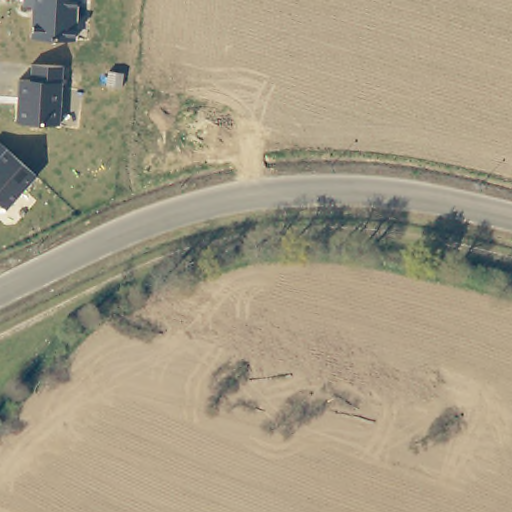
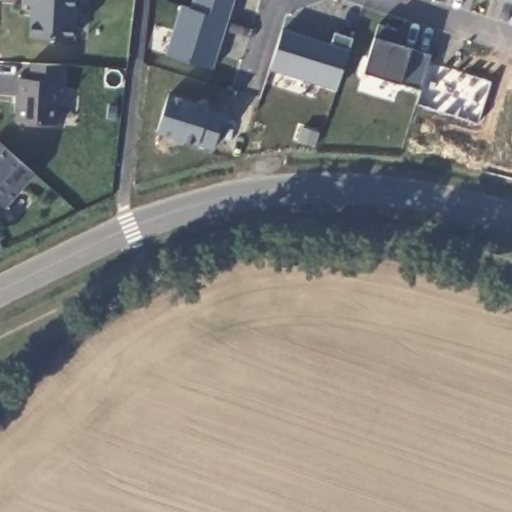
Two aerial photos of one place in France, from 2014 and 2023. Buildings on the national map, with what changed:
unchanged [(30,37),(32,5),(21,4),(22,0),(76,0),(74,38),(30,37)]
new [(234,0),(229,16),(192,5),(194,0),(234,0)]
new [(182,2),(192,5),(229,16),(214,65),(167,51),(182,2)]
new [(380,19),(397,25),(393,39),(432,50),(421,87),(364,68),(380,19)]
new [(283,27),(331,42),(335,29),(354,34),(338,86),(271,65),(283,27)]
unchanged [(61,63),(59,124),(15,122),(17,78),(30,78),(31,63),(61,63)]
new [(170,91),(211,104),(210,106),(225,111),(215,146),(158,128),(170,91)]
unchanged [(5,208),(0,203),(0,141),(36,173),(5,208)]

